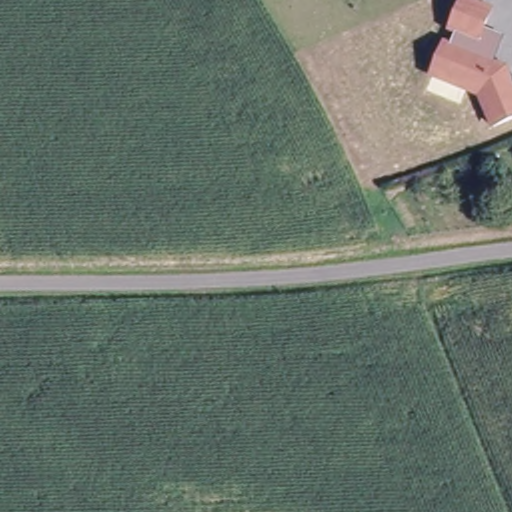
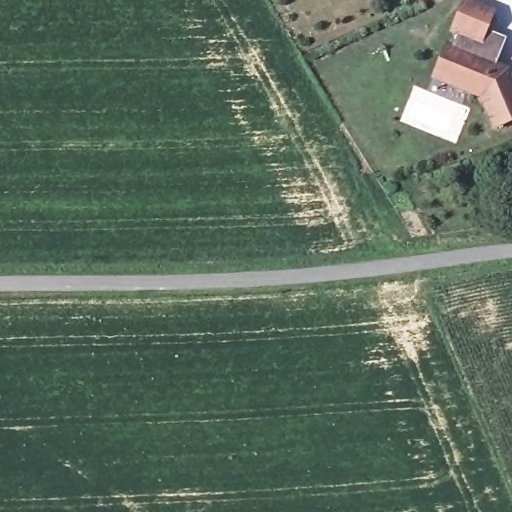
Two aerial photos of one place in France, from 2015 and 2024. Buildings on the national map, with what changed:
unchanged [(419,0),(427,0),(420,3),(419,0)]
unchanged [(447,51),(454,53),(459,39),(452,36),(465,5),(493,15),(485,35),(505,43),(495,69),(499,78),(509,74),(512,80),(512,124),(496,131),(483,101),(454,90),(435,83),(440,69),(447,51)]

